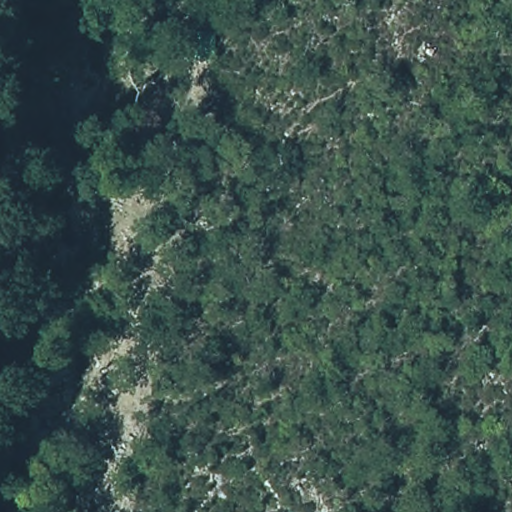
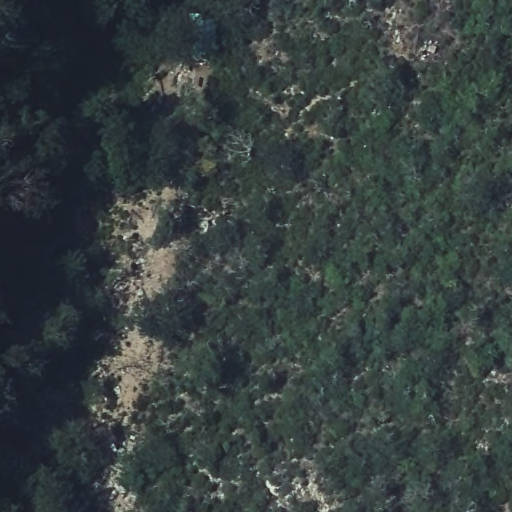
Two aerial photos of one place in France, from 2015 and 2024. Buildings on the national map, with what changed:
unchanged [(204,74),(176,66),(191,17),(217,25),(204,74)]

